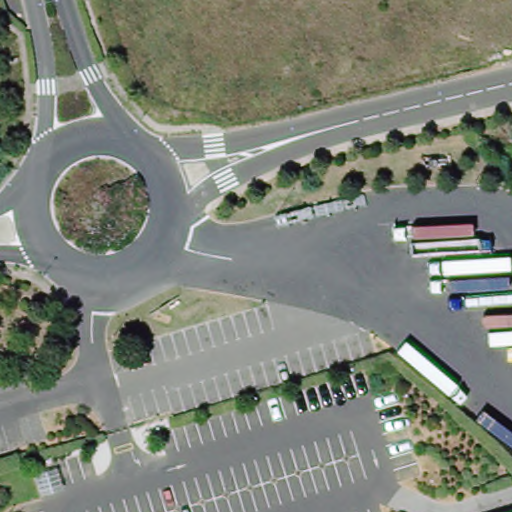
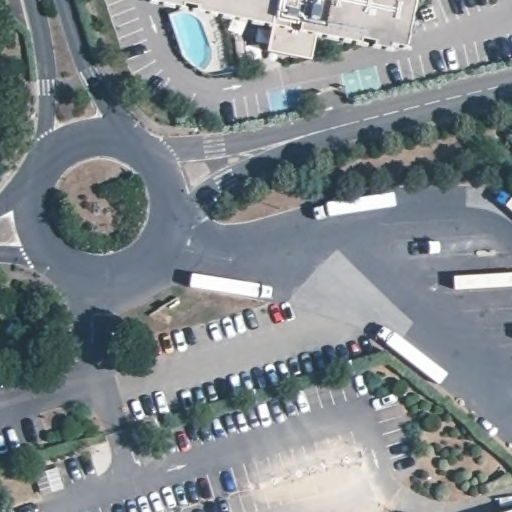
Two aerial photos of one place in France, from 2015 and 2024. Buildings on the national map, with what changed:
new [(180,8),(150,3),(151,0),(182,0),(180,8)]
new [(270,27),(180,8),(182,0),(384,0),(375,39),(373,41),(362,41),(314,31),(311,44),(308,60),(265,52),(269,35),(270,27)]
new [(405,49),(362,41),(373,41),(375,39),(384,0),(415,0),(405,49)]

